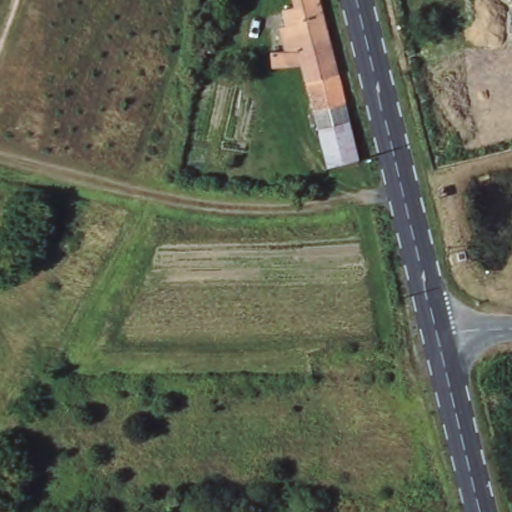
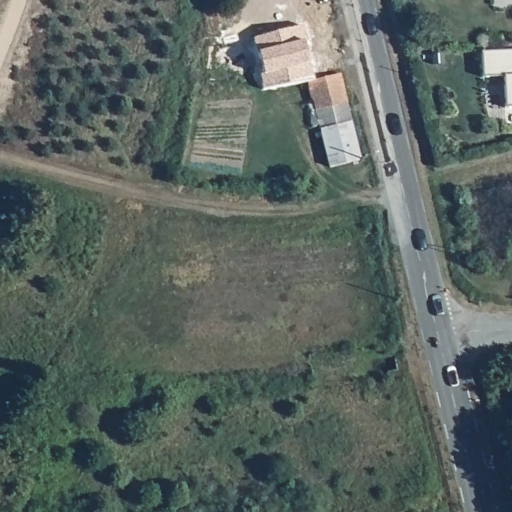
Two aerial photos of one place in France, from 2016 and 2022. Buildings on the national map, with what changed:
unchanged [(281,28),(293,24),(291,11),(297,9),(295,0),(321,0),(332,42),(305,47),(286,51),(281,28)]
unchanged [(359,160),(329,167),(315,111),(309,83),(306,66),(273,68),(272,53),(286,51),(305,47),(332,42),(340,78),(346,104),(351,128),(359,160)]
new [(512,108),(505,108),(503,77),(482,78),(481,52),(512,51),(512,108)]

